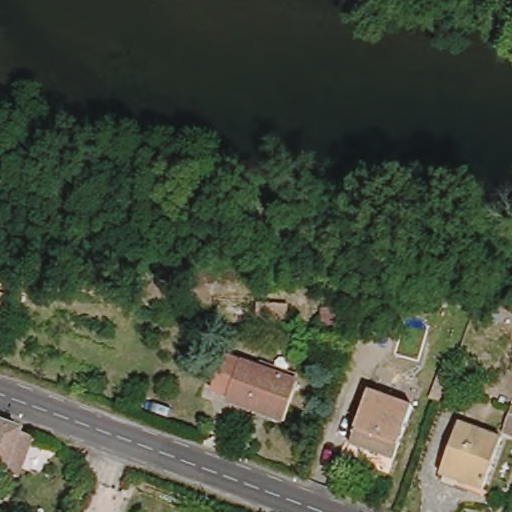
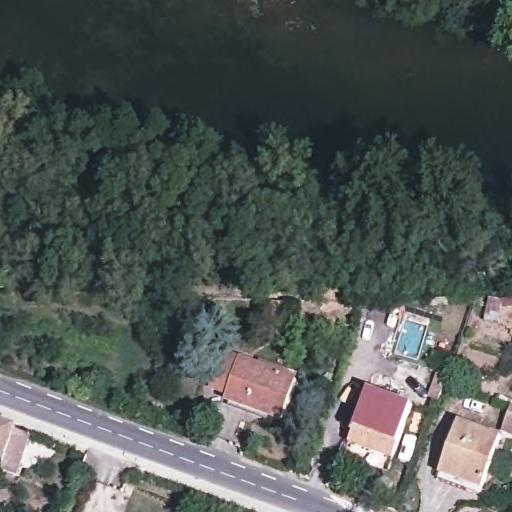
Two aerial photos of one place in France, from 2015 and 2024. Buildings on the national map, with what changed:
unchanged [(282,306),(281,321),(251,318),(252,303),(282,306)]
unchanged [(341,307),(342,326),(316,328),(315,310),(341,307)]
unchanged [(225,400),(227,397),(210,390),(223,356),(240,362),(297,382),(282,421),(225,400)]
unchanged [(365,390),(408,406),(388,458),(345,441),(365,390)]
unchanged [(498,433),(507,409),(512,412),(512,439),(498,433)]
unchanged [(434,476),(454,425),(495,441),(476,491),(472,490),(467,488),(464,487),(461,486),(434,476)]
unchanged [(19,436),(5,474),(0,472),(0,429),(5,430),(19,436)]

